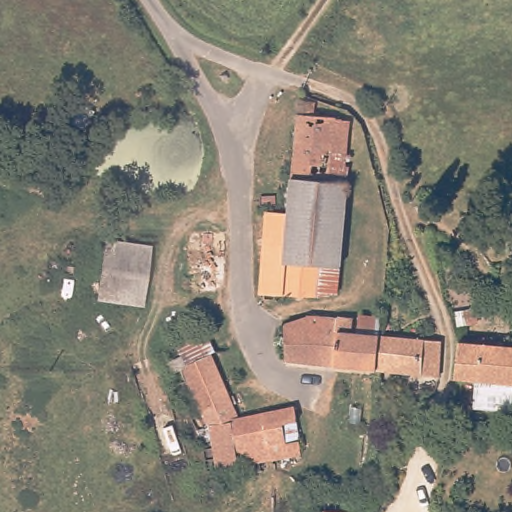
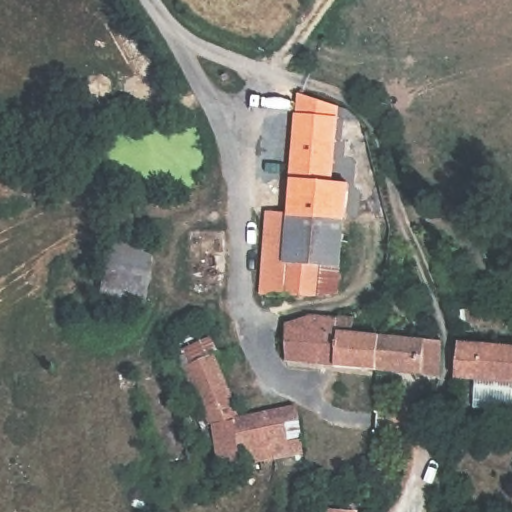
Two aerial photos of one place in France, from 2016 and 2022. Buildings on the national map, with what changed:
unchanged [(299,95),(317,96),(318,114),(349,116),(344,178),(291,174),(299,95)]
unchanged [(344,221),(286,216),(288,212),(291,174),(344,178),(349,179),(344,221)]
unchanged [(313,293),(282,291),(258,288),(265,209),(288,212),(286,216),(283,259),(317,263),(313,293)]
unchanged [(283,259),(286,216),(344,221),(341,265),(317,263),(283,259)]
unchanged [(144,307),(98,302),(105,236),(151,242),(144,307)]
unchanged [(378,368),(280,358),(284,322),(310,323),(313,313),(348,317),(349,329),(381,332),(378,368)]
unchanged [(208,329),(218,353),(184,368),(169,341),(212,321),(208,329)]
unchanged [(381,332),(444,338),(441,374),(378,368),(381,332)]
unchanged [(512,340),(512,402),(473,399),(476,371),(454,370),(458,337),(512,340)]
unchanged [(244,416),(294,398),(305,432),(290,439),(279,444),(281,453),(255,463),(248,449),(244,440),(222,448),(184,368),(218,353),(244,416)]

